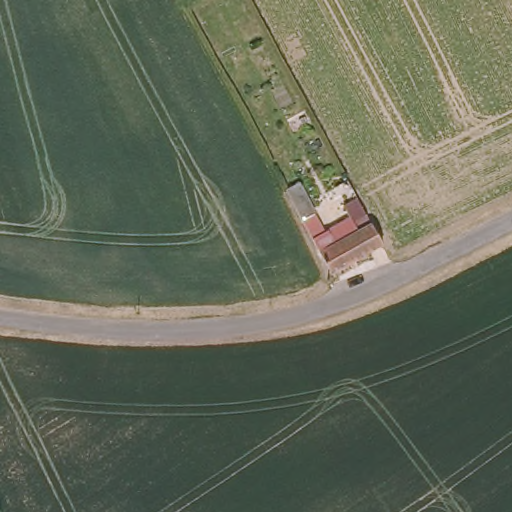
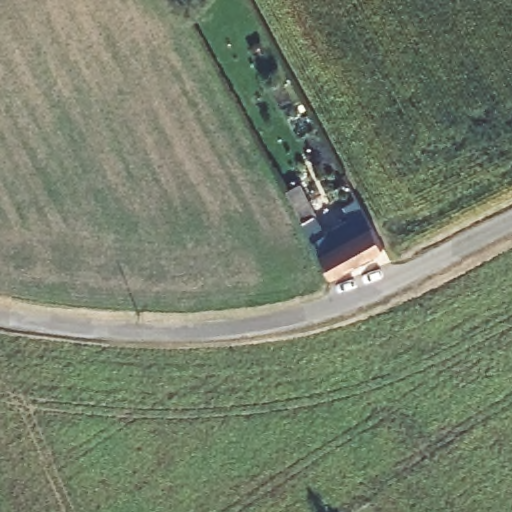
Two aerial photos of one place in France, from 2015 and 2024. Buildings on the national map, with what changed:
unchanged [(344,173),(364,209),(353,215),(349,207),(320,221),(313,210),(303,193),(344,173)]
unchanged [(384,246),(331,274),(324,264),(296,220),(313,210),(320,221),(324,228),(353,215),(364,209),(380,237),(384,246)]

